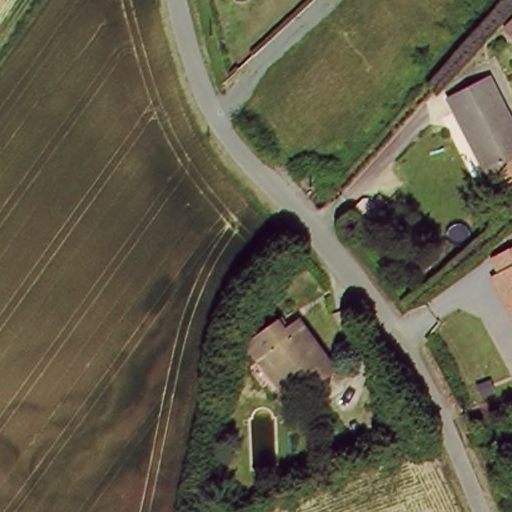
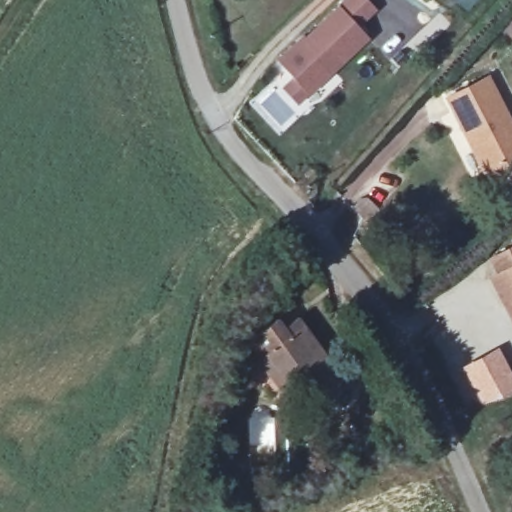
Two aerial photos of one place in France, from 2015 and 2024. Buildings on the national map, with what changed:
new [(377,10),(358,27),(370,39),(310,96),(298,107),(281,90),(290,78),(276,63),(301,37),(304,39),(338,6),(345,0),(367,0),(377,10)]
unchanged [(512,126),(512,165),(485,177),(457,115),(450,100),(466,94),(493,82),(512,126)]
unchanged [(510,316),(491,272),(500,268),(493,252),(512,244),(512,321),(510,316)]
unchanged [(274,320),(281,326),(298,316),(334,366),(315,381),(306,368),(284,382),(263,351),(253,357),(243,344),(274,320)]
new [(498,346),(512,374),(512,392),(482,407),(459,367),(498,346)]

